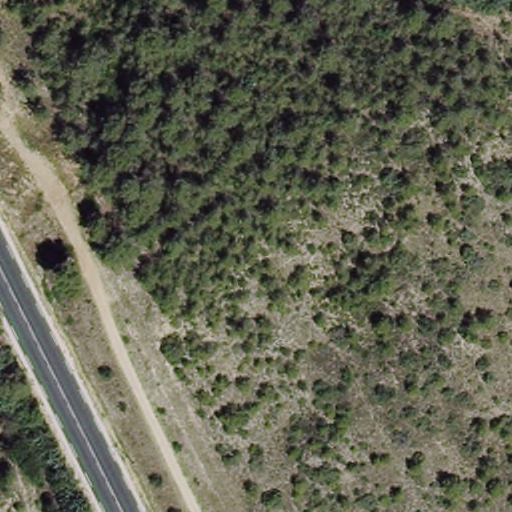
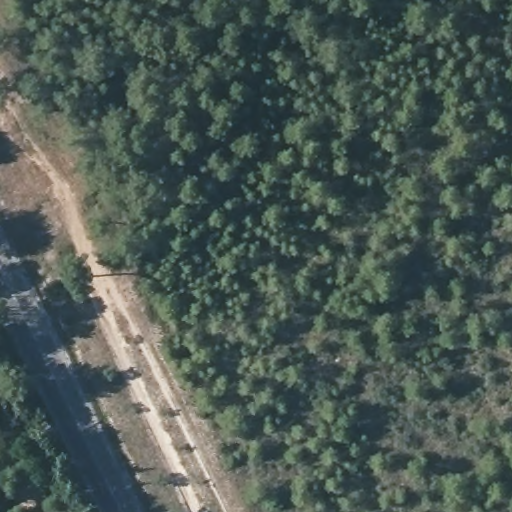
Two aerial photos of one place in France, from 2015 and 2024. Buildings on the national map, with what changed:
[]

